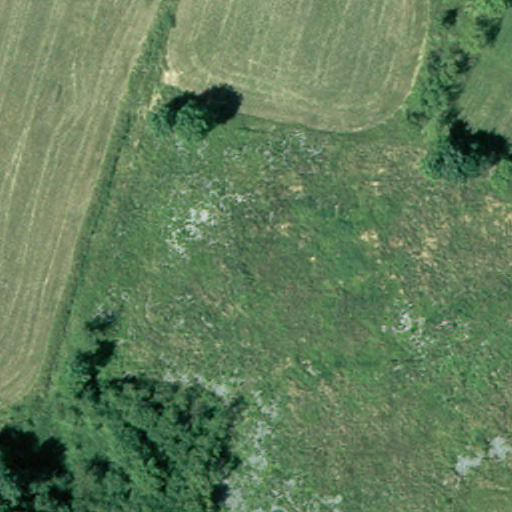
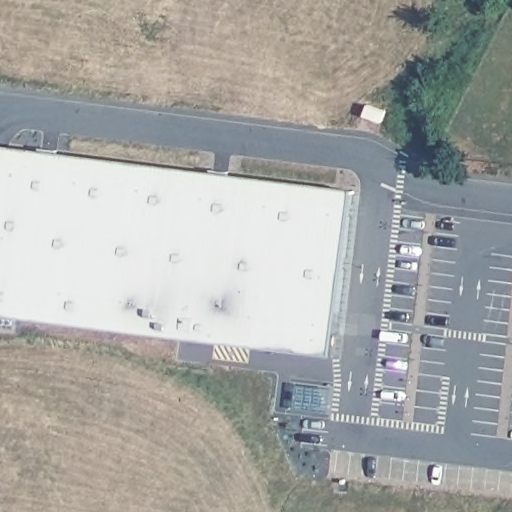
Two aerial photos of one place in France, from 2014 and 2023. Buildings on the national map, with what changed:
new [(334,354),(0,310),(0,199),(7,145),(355,189),(334,354)]
new [(297,390),(332,393),(329,417),(295,413),(297,390)]

